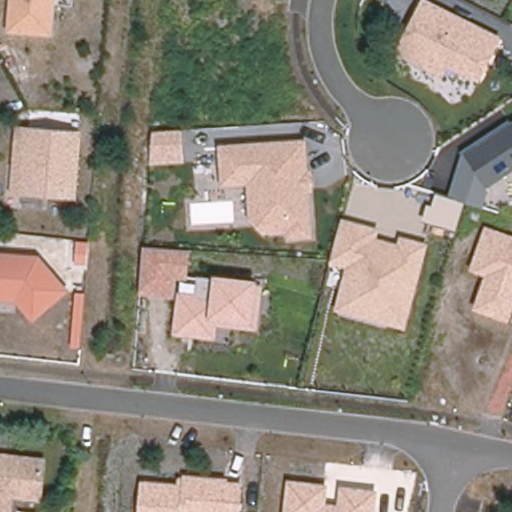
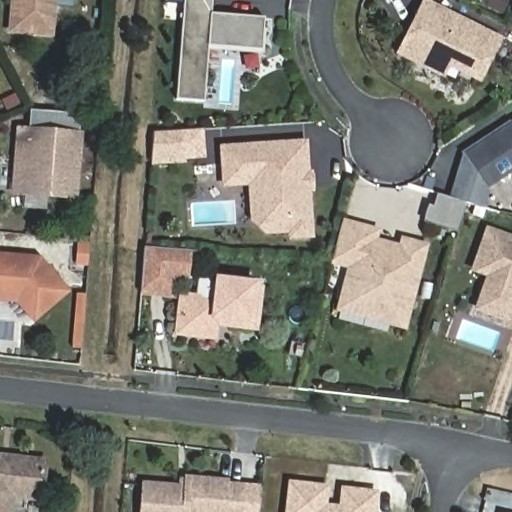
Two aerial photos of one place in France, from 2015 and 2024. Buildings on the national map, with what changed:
unchanged [(6,33),(9,0),(56,0),(53,35),(6,33)]
new [(204,101),(177,99),(185,0),(213,0),(211,14),(265,18),(261,50),(207,47),(204,101)]
unchanged [(450,66),(446,76),(396,53),(422,0),(432,0),(505,36),(482,82),(450,66)]
unchanged [(457,230),(422,219),(426,204),(431,205),(434,193),(446,197),(460,154),(507,120),(509,123),(512,121),(512,171),(488,187),(482,206),(465,202),(457,230)]
unchanged [(77,199),(10,193),(16,124),(84,131),(77,199)]
unchanged [(187,161),(154,164),(154,130),(184,129),(187,161)]
unchanged [(310,169),(315,169),(316,191),(311,191),(313,238),(290,239),(288,234),(264,234),(249,216),(247,185),(221,187),(218,144),(308,139),(310,169)]
unchanged [(405,329),(335,310),(345,268),(329,264),(341,219),(379,229),(376,238),(397,243),(399,236),(429,244),(405,329)]
unchanged [(508,323),(473,309),(485,276),(470,270),(485,225),(512,235),(512,313),(508,323)]
unchanged [(176,279),(174,297),(140,294),(142,247),(190,250),(187,279),(176,279)]
unchanged [(34,322),(16,302),(0,300),(0,251),(41,254),(71,292),(34,322)]
unchanged [(257,331),(216,326),(215,339),(172,334),(177,292),(194,294),(196,277),(213,279),(214,275),(257,281),(256,284),(263,284),(257,331)]
unchanged [(15,499),(13,512),(0,512),(0,452),(48,457),(45,502),(15,499)]
unchanged [(140,481),(177,484),(177,478),(182,479),(183,475),(227,478),(227,482),(255,485),(253,512),(137,512),(140,481)]
unchanged [(286,481),(328,485),(326,503),(336,504),(340,487),(377,491),(375,512),(283,512),(286,481)]

